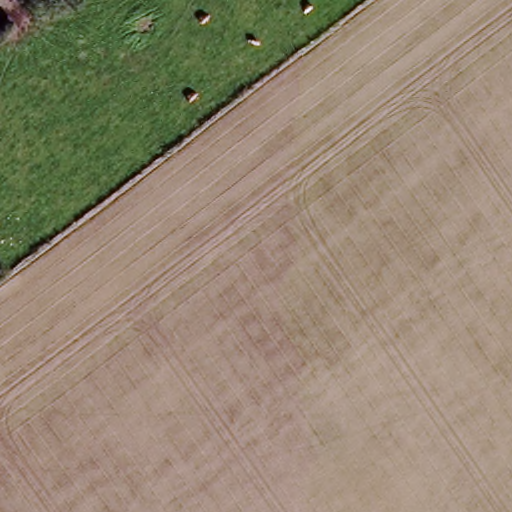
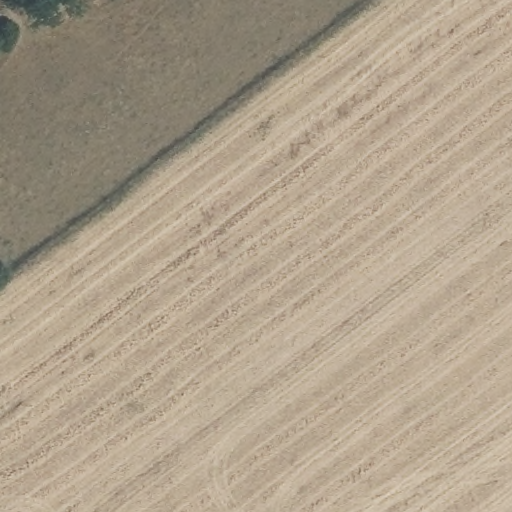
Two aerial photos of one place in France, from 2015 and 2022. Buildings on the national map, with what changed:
[]

